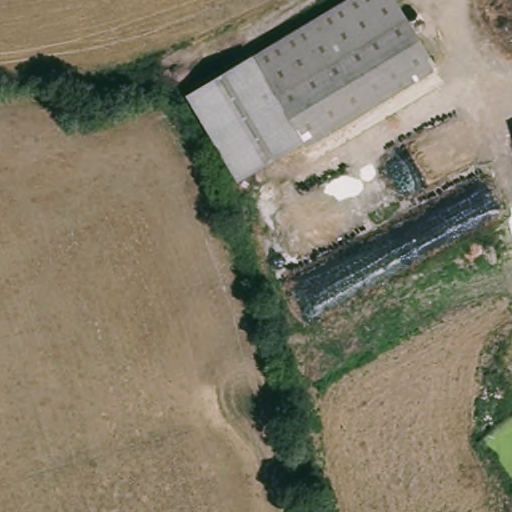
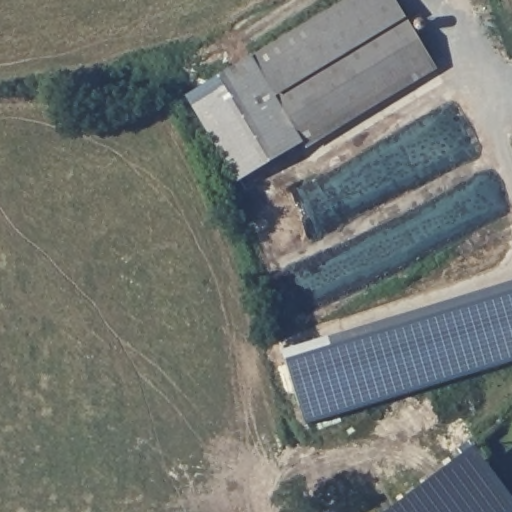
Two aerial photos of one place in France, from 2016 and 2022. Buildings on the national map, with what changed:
unchanged [(350,0),(393,0),(433,64),(237,177),(189,92),(282,39),(350,0)]
new [(287,361),(512,291),(512,362),(308,427),(287,361)]

